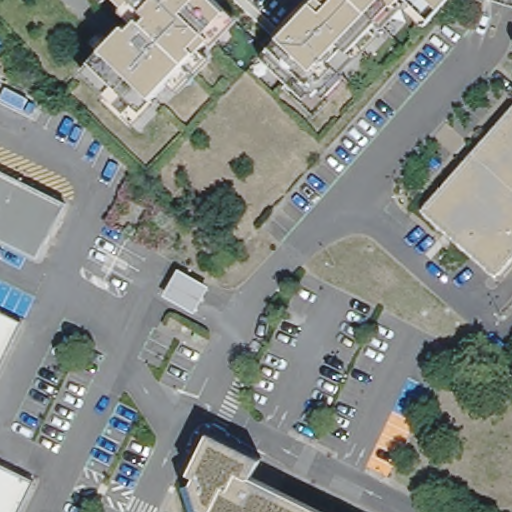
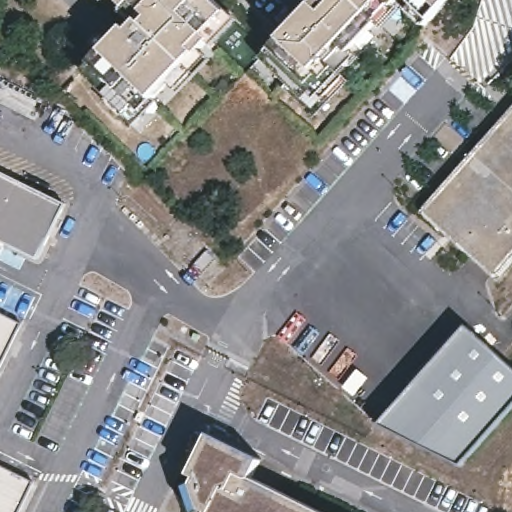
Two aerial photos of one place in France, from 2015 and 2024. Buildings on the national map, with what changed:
unchanged [(124,21),(129,26),(137,19),(118,0),(219,0),(238,18),(141,113),(88,62),(101,48),(124,21)]
unchanged [(105,0),(110,0),(108,3),(105,0)]
unchanged [(312,0),(395,0),(351,47),(356,53),(339,66),(350,78),(311,111),(262,52),(281,33),(312,0)]
unchanged [(408,0),(448,0),(430,20),(408,0)]
unchanged [(495,277),(420,209),(512,107),(512,258),(495,277)]
unchanged [(37,254),(0,237),(0,169),(63,199),(37,254)]
unchanged [(0,362),(0,309),(20,319),(0,362)]
new [(467,330),(512,371),(512,413),(460,471),(376,428),(467,330)]
unchanged [(206,508),(208,502),(203,499),(194,472),(197,467),(191,464),(211,427),(262,452),(253,471),(336,512),(213,512),(206,508)]
unchanged [(17,512),(0,512),(0,461),(34,478),(17,512)]

